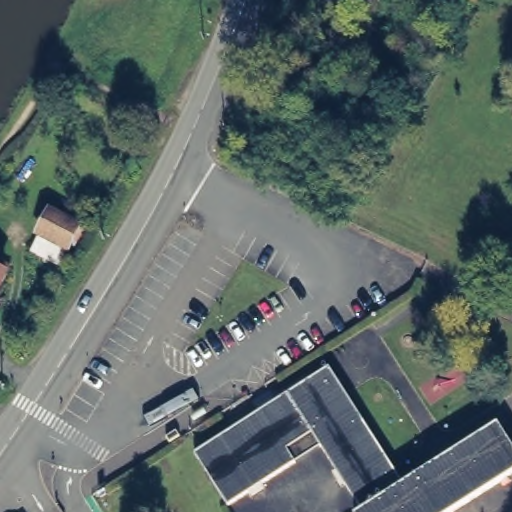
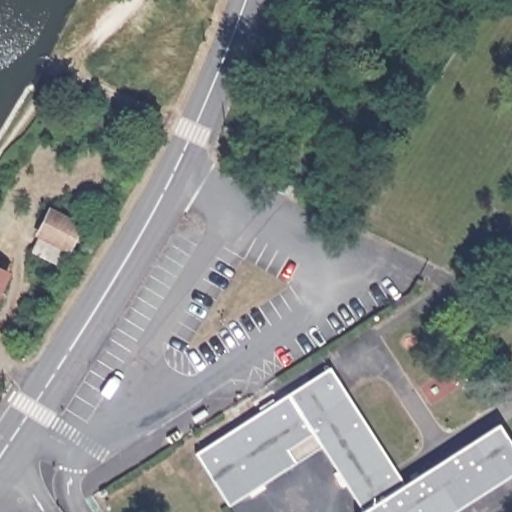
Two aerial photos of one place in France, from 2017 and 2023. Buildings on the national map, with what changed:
unchanged [(46,208),(75,220),(56,261),(27,248),(46,208)]
unchanged [(6,268),(0,280),(0,265),(6,268)]
unchanged [(330,367),(400,480),(496,421),(512,447),(512,471),(447,512),(356,512),(356,511),(364,506),(324,442),(296,459),(227,502),(196,450),(330,367)]

